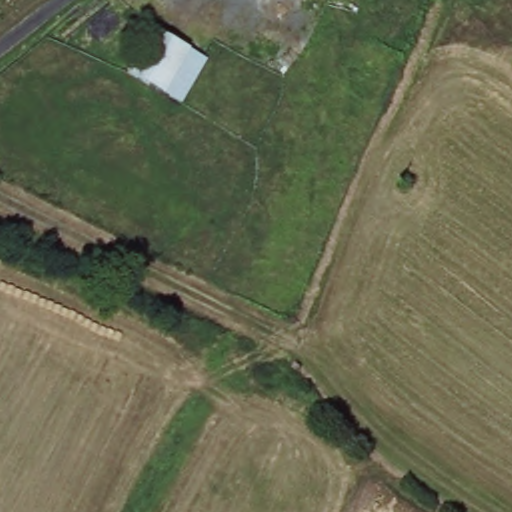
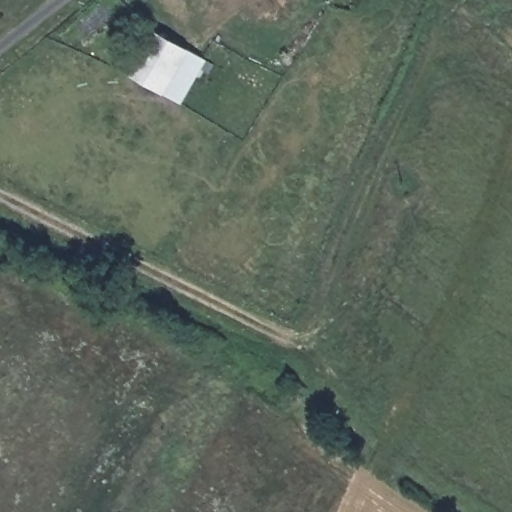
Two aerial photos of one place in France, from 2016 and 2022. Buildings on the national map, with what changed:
unchanged [(157,31),(191,54),(162,96),(129,74),(157,31)]

